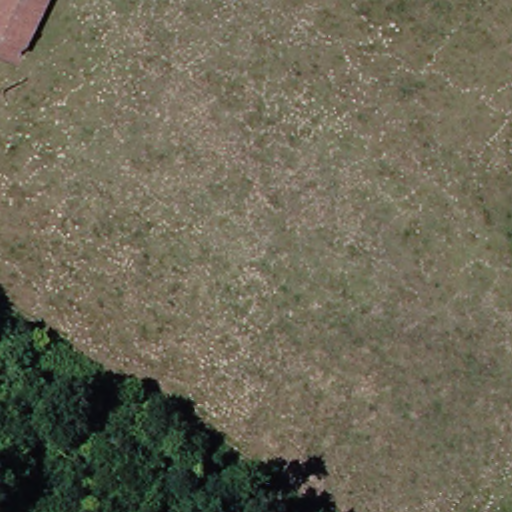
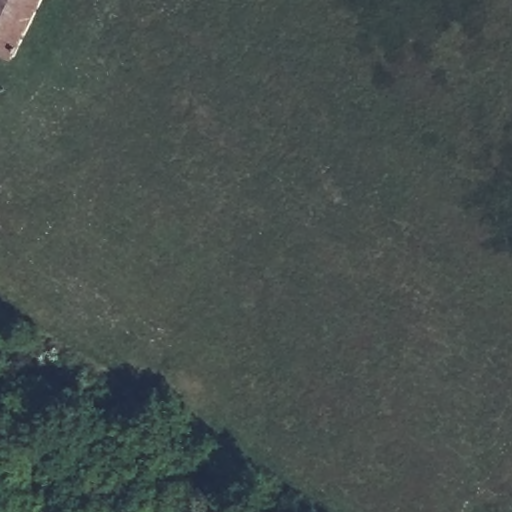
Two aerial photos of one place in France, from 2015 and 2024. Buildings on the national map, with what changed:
unchanged [(0,37),(0,0),(43,0),(21,48),(0,37)]

